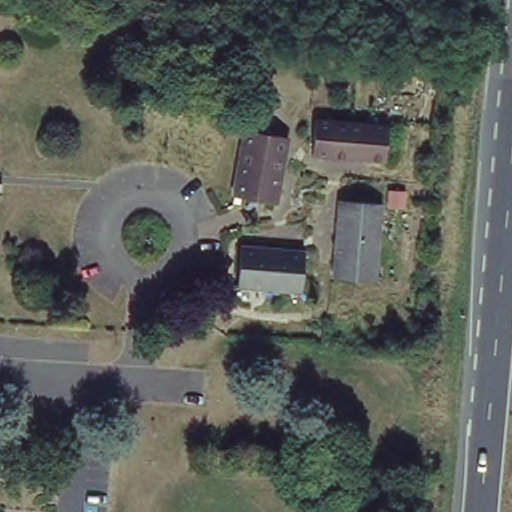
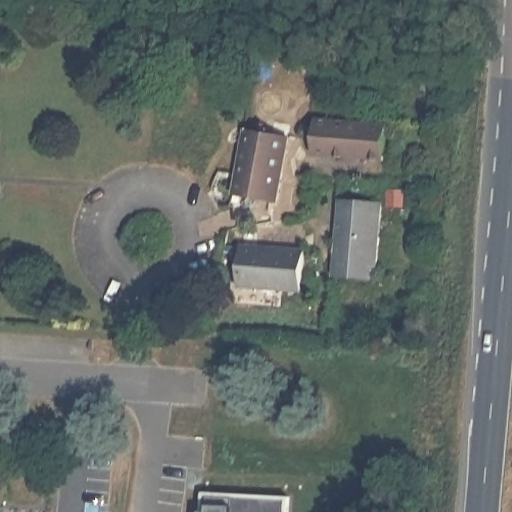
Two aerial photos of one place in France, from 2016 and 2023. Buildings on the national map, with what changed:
unchanged [(389,125),(385,162),(313,156),(315,119),(389,125)]
unchanged [(288,137),(275,204),(234,196),(245,129),(288,137)]
unchanged [(387,209),(381,284),(338,281),(344,205),(387,209)]
unchanged [(305,250),(301,293),(237,288),(241,245),(305,250)]
new [(288,512),(201,512),(203,491),(289,495),(288,512)]

